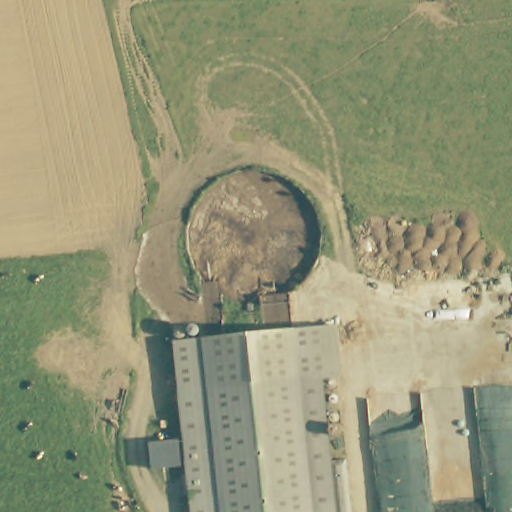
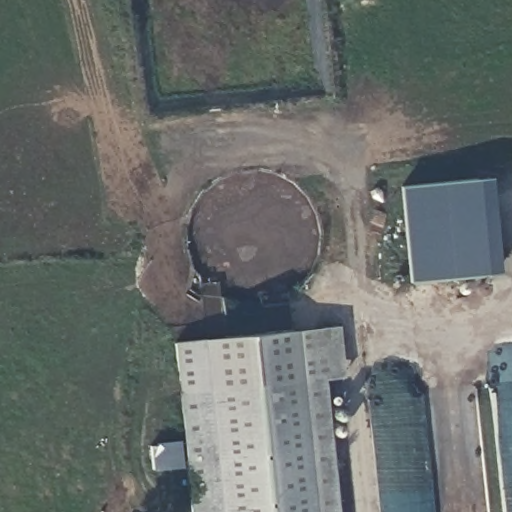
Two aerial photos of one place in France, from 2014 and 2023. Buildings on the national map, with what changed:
new [(499,274),(409,283),(399,186),(489,178),(499,274)]
unchanged [(176,342),(339,329),(343,379),(323,381),(215,389),(180,392),(176,342)]
unchanged [(338,512),(226,512),(215,389),(323,381),(338,512)]
unchanged [(226,512),(193,512),(180,392),(215,389),(226,512)]

